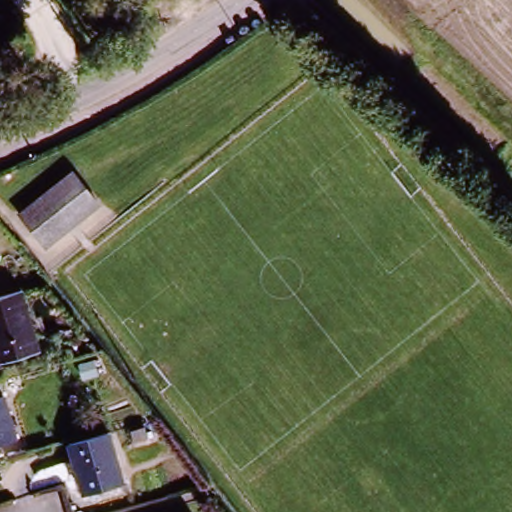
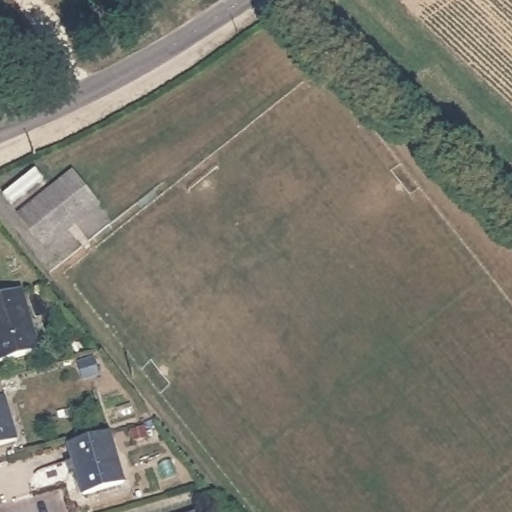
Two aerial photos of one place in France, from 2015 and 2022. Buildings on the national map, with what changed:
unchanged [(23,221),(78,178),(99,205),(45,249),(23,221)]
unchanged [(21,295),(38,354),(0,364),(0,301),(21,295)]
unchanged [(0,446),(0,387),(3,386),(18,440),(0,446)]
unchanged [(69,447),(110,435),(124,483),(82,495),(69,447)]

